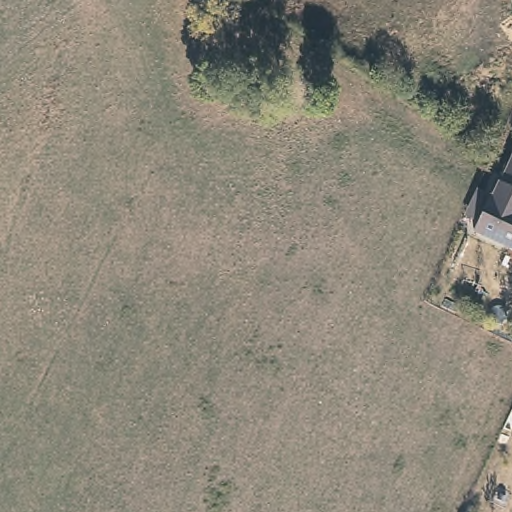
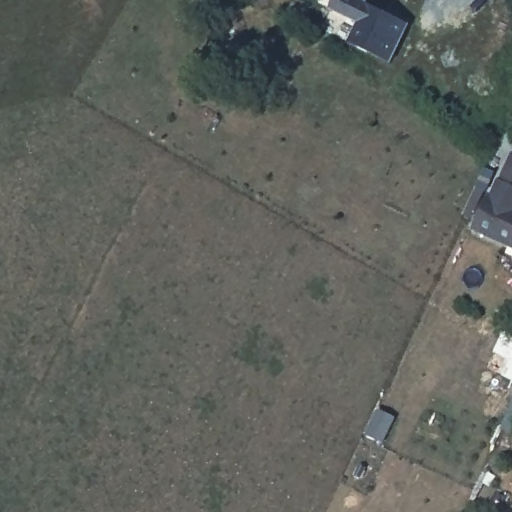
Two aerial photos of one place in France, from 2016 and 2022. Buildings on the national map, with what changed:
new [(335,0),(363,0),(370,3),(368,6),(410,26),(392,63),(349,43),(358,23),(331,9),(335,0)]
unchanged [(512,239),(472,221),(487,185),(492,187),(500,167),(503,169),(512,148),(512,239)]

